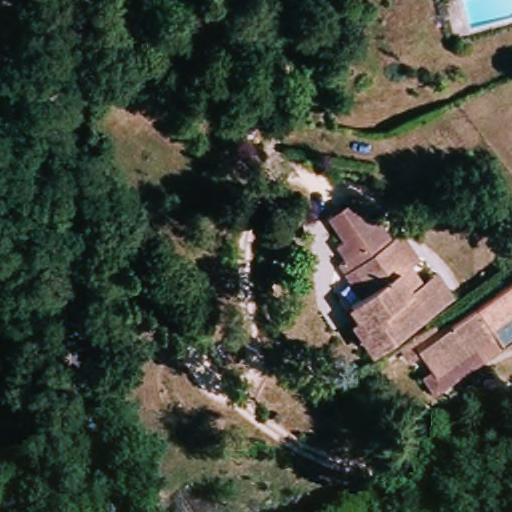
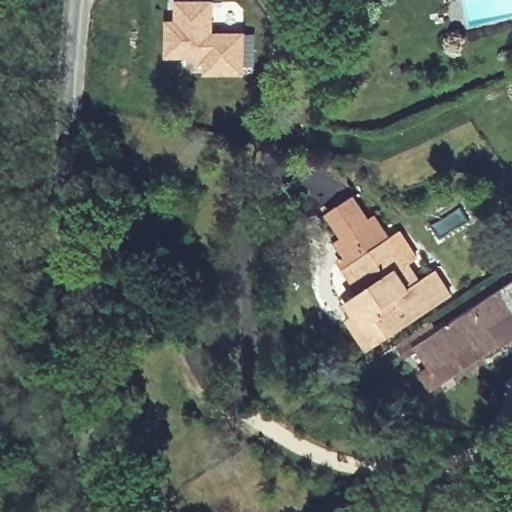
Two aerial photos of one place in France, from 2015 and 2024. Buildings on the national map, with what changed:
new [(205,57),(167,57),(167,19),(176,20),(176,0),(195,0),(214,0),(214,32),(246,33),(245,75),(205,75),(205,57)]
unchanged [(455,299),(447,304),(417,324),(423,334),(412,341),(407,331),(396,338),(368,294),(352,271),(347,262),(338,249),(345,244),(330,221),(355,204),(370,228),(376,224),(391,246),(396,243),(412,267),(410,269),(421,286),(431,280),(439,274),(455,299)]
unchanged [(429,343),(512,288),(512,346),(505,351),(497,338),(437,377),(412,341),(423,334),(429,343)]
unchanged [(396,338),(368,356),(340,312),(368,294),(396,338)]

